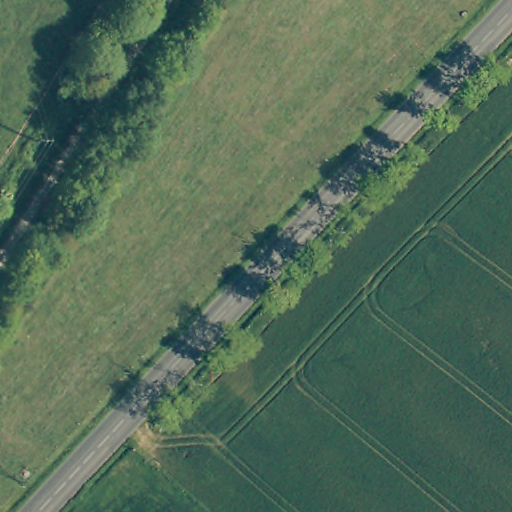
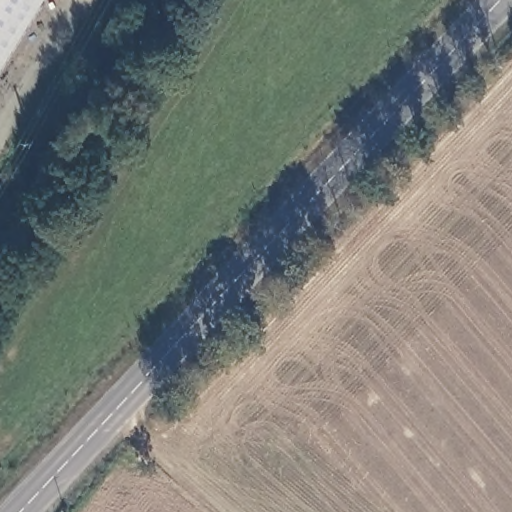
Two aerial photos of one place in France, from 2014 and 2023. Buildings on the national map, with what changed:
new [(0,78),(0,0),(49,0),(0,78)]

